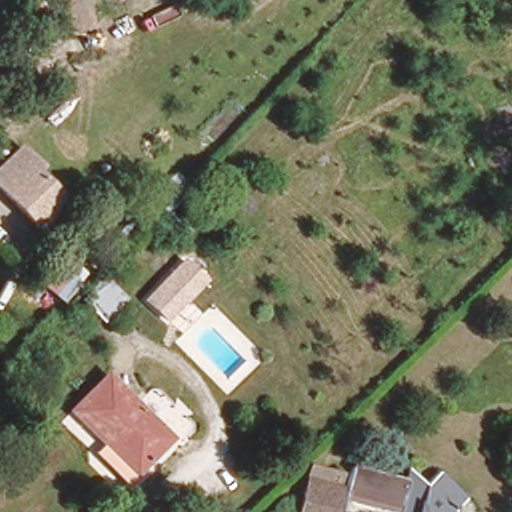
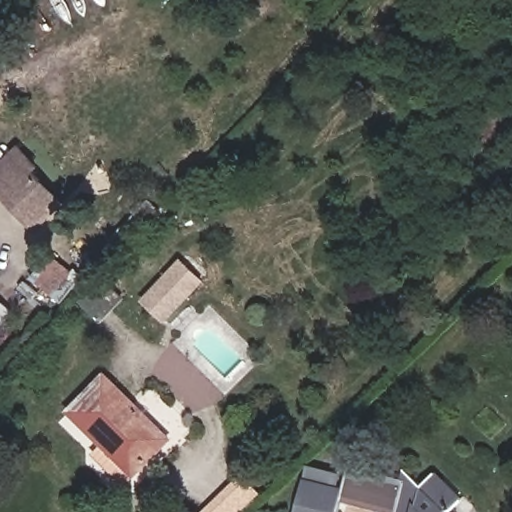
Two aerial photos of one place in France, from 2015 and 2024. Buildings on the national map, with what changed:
unchanged [(0,193),(0,165),(20,146),(72,206),(39,237),(0,193)]
unchanged [(64,303),(28,279),(50,252),(82,277),(64,303)]
unchanged [(139,299),(164,270),(179,254),(202,276),(187,292),(164,321),(139,299)]
unchanged [(105,326),(80,303),(103,277),(128,301),(105,326)]
new [(0,301),(11,311),(0,323),(0,301)]
unchanged [(104,439),(69,405),(106,369),(170,431),(142,461),(135,468),(104,439)]
unchanged [(346,463),(412,472),(402,512),(339,500),(337,512),(294,512),(303,455),(346,463)]
unchanged [(412,472),(415,461),(435,481),(431,477),(436,471),(467,503),(464,509),(467,512),(402,512),(412,472)]
new [(261,495),(242,512),(203,512),(243,474),(261,495)]

